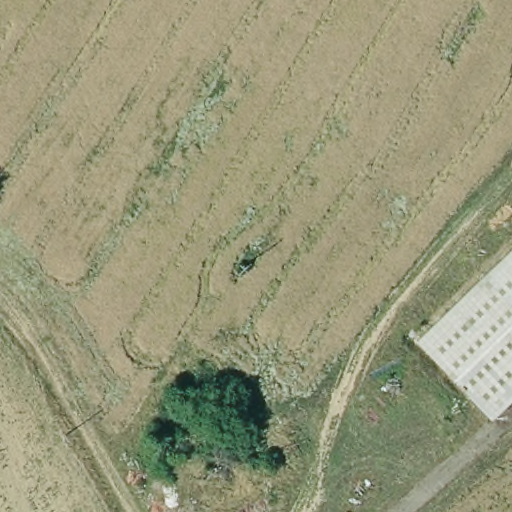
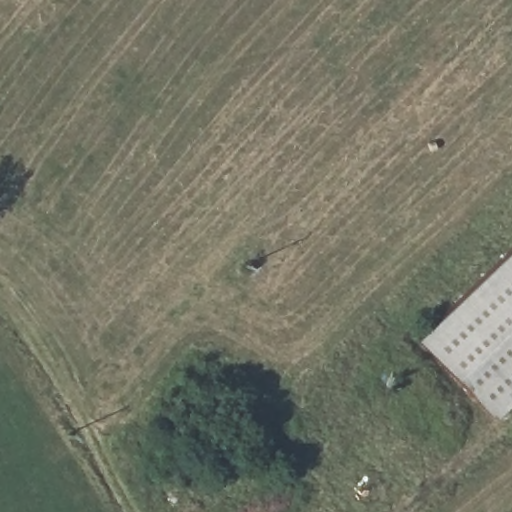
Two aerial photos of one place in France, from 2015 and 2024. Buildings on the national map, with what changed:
unchanged [(415,343),(512,249),(512,405),(494,423),(415,343)]

